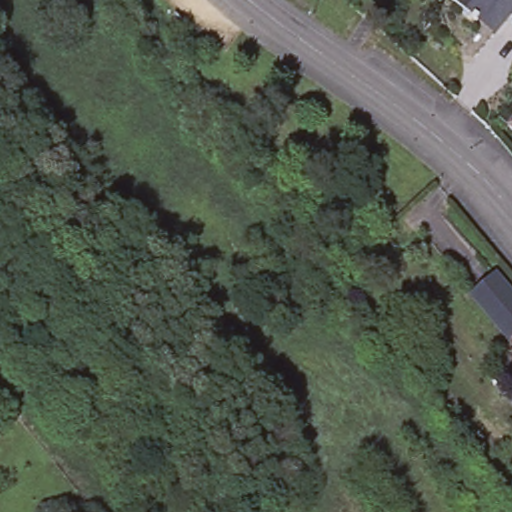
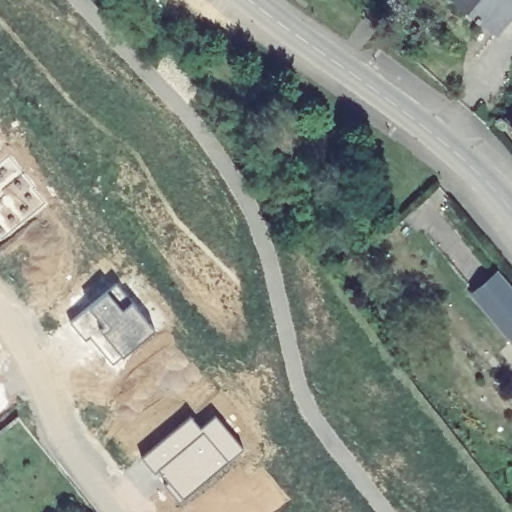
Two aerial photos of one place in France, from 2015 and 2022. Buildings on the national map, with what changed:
unchanged [(471,17),(473,15),(455,0),(512,0),(512,11),(497,28),(480,14),(475,20),(471,17)]
unchanged [(512,122),(512,129),(509,126),(512,122)]
new [(12,158),(37,187),(33,189),(48,205),(0,241),(0,167),(12,158)]
unchanged [(502,271),(512,283),(512,330),(479,290),(502,271)]
new [(119,285),(156,333),(114,365),(91,337),(87,342),(71,322),(119,285)]
new [(186,415),(196,426),(212,414),(241,448),(177,498),(136,457),(186,415)]

